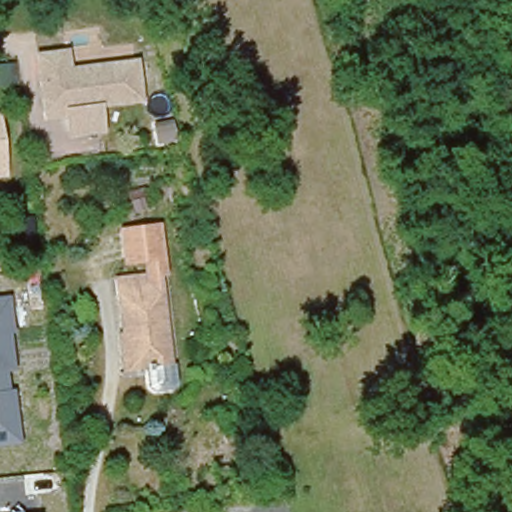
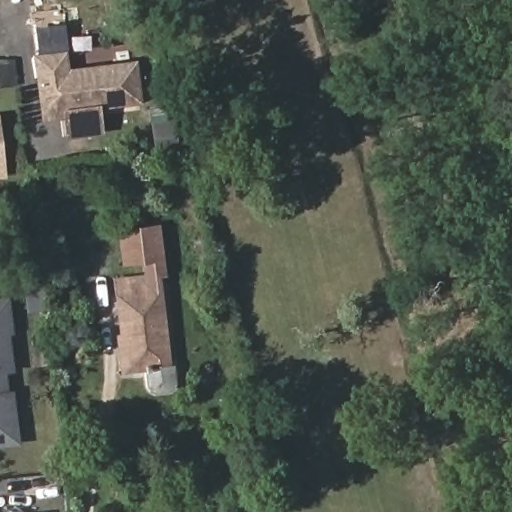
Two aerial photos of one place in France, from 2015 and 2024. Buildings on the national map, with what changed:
unchanged [(144,103),(102,108),(105,133),(69,137),(66,120),(44,121),(34,52),(69,48),(72,66),(138,59),(144,103)]
unchanged [(0,178),(0,115),(8,177),(0,178)]
unchanged [(161,268),(143,269),(141,262),(121,264),(116,226),(161,223),(169,276),(162,275),(161,268)]
unchanged [(170,357),(173,357),(175,376),(170,383),(153,386),(147,380),(144,362),(131,363),(119,292),(117,275),(129,273),(156,269),(170,357)]
unchanged [(15,333),(11,334),(16,370),(9,371),(11,389),(15,388),(22,444),(0,446),(0,296),(10,295),(15,333)]

